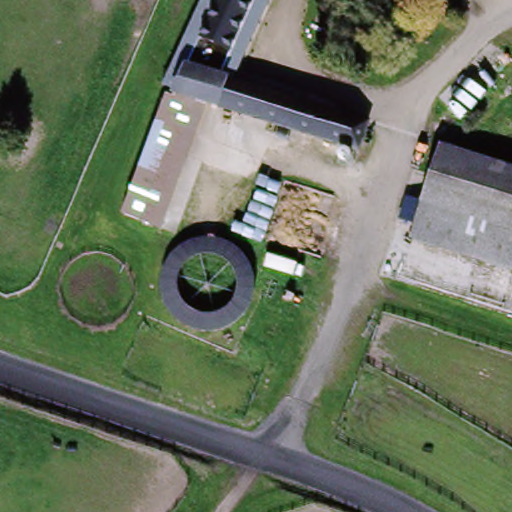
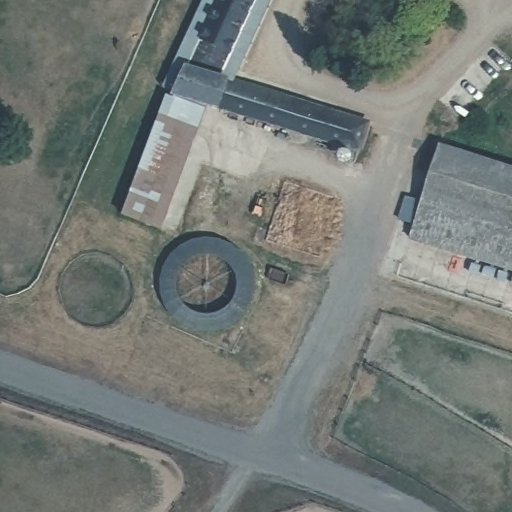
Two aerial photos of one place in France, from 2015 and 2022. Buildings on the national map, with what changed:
unchanged [(234,85),(179,67),(170,92),(162,88),(202,0),(274,0),(234,85)]
unchanged [(453,85),(497,45),(512,61),(512,83),(480,114),(453,85)]
unchanged [(170,92),(179,67),(362,128),(355,154),(300,135),(205,103),(170,92)]
unchanged [(205,103),(163,223),(127,210),(170,92),(205,103)]
unchanged [(512,171),(512,276),(407,245),(436,145),(512,171)]
unchanged [(175,321),(168,311),(162,301),(161,290),(161,280),(164,269),(168,259),(176,251),(185,244),(196,240),(206,238),(217,239),(227,243),(236,247),(241,252),(246,258),(250,266),(254,277),(255,286),(253,297),(251,304),(247,312),(241,319),(232,325),(225,329),(215,332),(206,332),(196,331),(191,330),(184,327),(175,321)]

